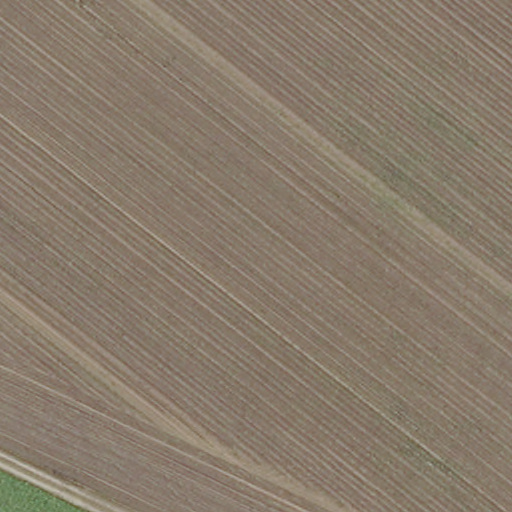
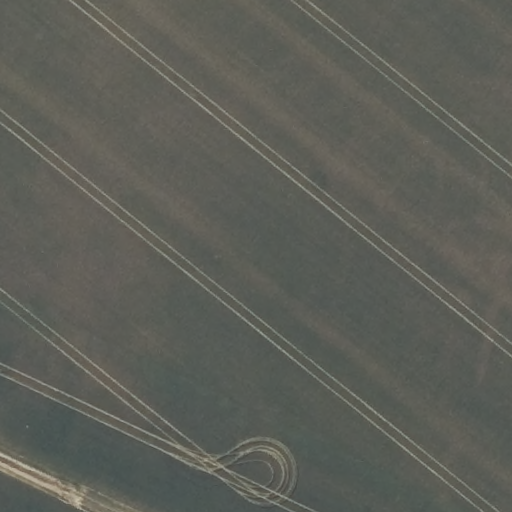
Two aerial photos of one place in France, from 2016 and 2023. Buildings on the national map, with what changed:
[]

